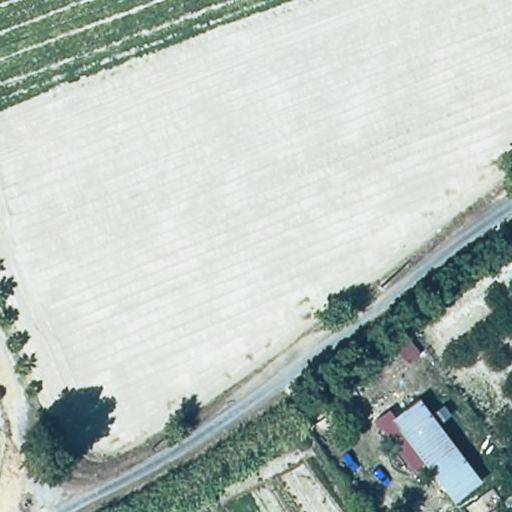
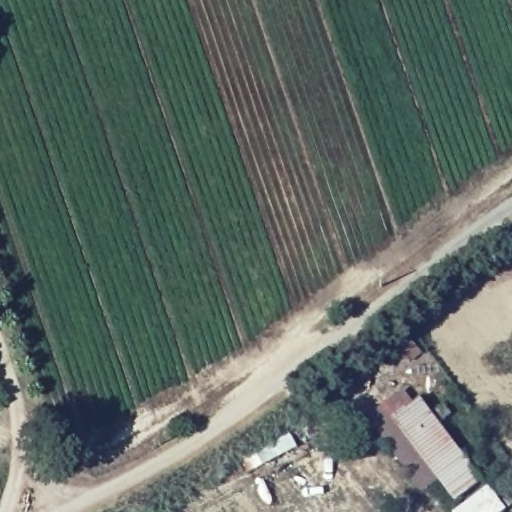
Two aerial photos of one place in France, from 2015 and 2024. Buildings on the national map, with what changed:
unchanged [(452,502),(421,463),(412,470),(375,420),(389,410),(393,416),(420,399),(482,481),(452,502)]

